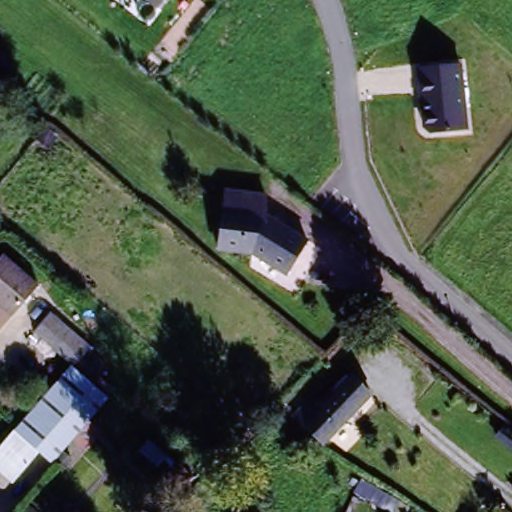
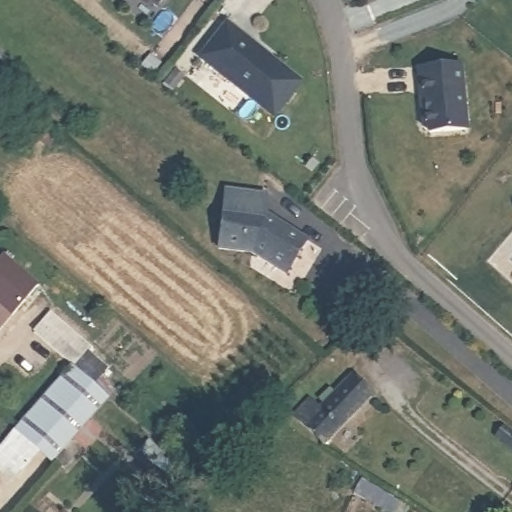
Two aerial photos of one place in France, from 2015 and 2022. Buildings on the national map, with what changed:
unchanged [(158,11),(144,0),(166,0),(158,11)]
new [(227,27),(303,86),(276,121),(201,62),(227,27)]
unchanged [(4,85),(0,82),(0,55),(17,70),(4,85)]
unchanged [(421,125),(417,66),(463,61),(468,128),(431,135),(421,125)]
unchanged [(285,272),(251,250),(219,241),(227,182),(266,191),(267,211),(307,239),(285,272)]
unchanged [(44,292),(16,323),(0,309),(0,264),(5,258),(44,292)]
unchanged [(35,333),(51,315),(89,346),(73,365),(35,333)]
unchanged [(42,451),(20,431),(76,367),(110,397),(55,462),(42,451)]
unchanged [(352,377),(374,397),(322,445),(303,425),(352,377)]
unchanged [(42,451),(16,479),(0,465),(0,454),(20,431),(42,451)]

